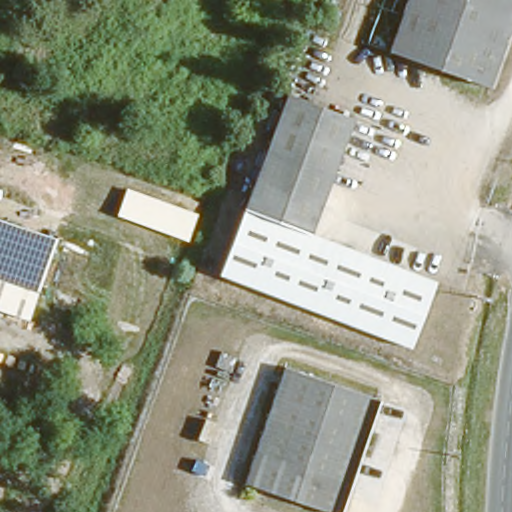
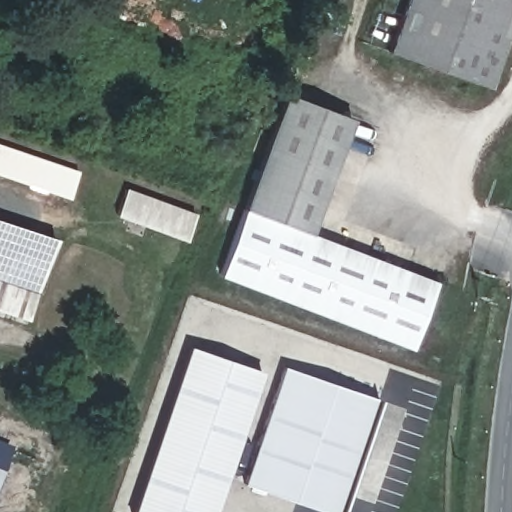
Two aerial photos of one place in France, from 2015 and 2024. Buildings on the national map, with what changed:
unchanged [(512,10),(485,85),(387,47),(402,2),(397,0),(512,0),(512,10)]
unchanged [(432,278),(409,343),(216,274),(239,209),(281,93),(282,92),(331,111),(350,117),(308,233),(432,278)]
new [(0,175),(0,144),(78,171),(69,198),(0,175)]
new [(187,242),(116,215),(126,187),(197,214),(187,242)]
unchanged [(0,312),(0,220),(57,238),(28,322),(0,312)]
new [(131,512),(187,347),(262,372),(215,512),(131,512)]
unchanged [(303,512),(233,485),(278,366),(372,402),(330,512),(303,512)]
new [(10,449),(0,475),(0,444),(10,449)]

